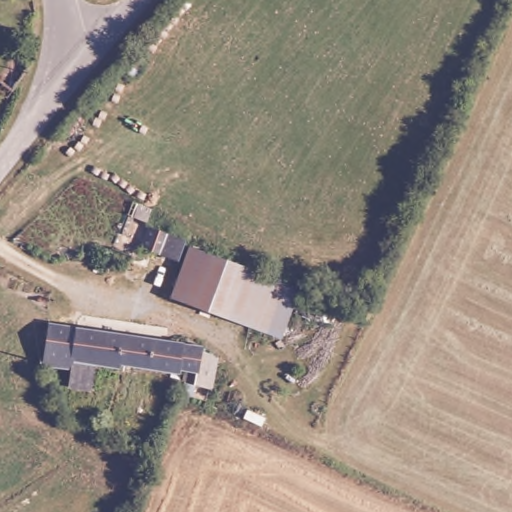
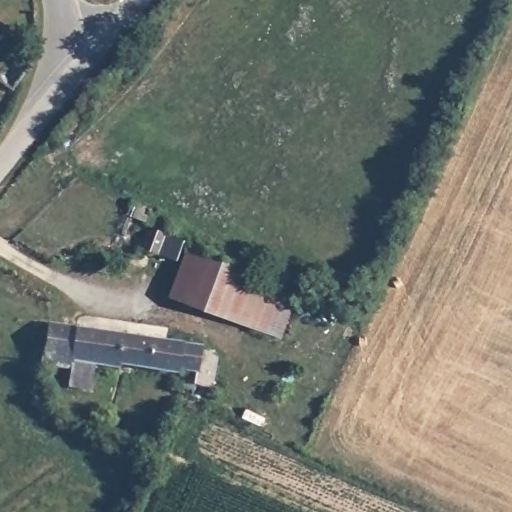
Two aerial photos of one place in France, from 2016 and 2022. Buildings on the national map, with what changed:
unchanged [(132,216),(137,203),(151,208),(146,222),(132,216)]
unchanged [(177,259),(145,246),(151,228),(184,241),(177,259)]
unchanged [(171,299),(190,246),(300,286),(281,338),(171,299)]
unchanged [(190,379),(177,376),(180,366),(179,366),(174,365),(174,366),(174,368),(115,359),(115,362),(88,359),(85,384),(65,381),(65,364),(38,360),(44,317),(198,340),(197,346),(212,351),(206,381),(190,379)]
unchanged [(179,378),(190,379),(187,391),(176,388),(179,378)]

